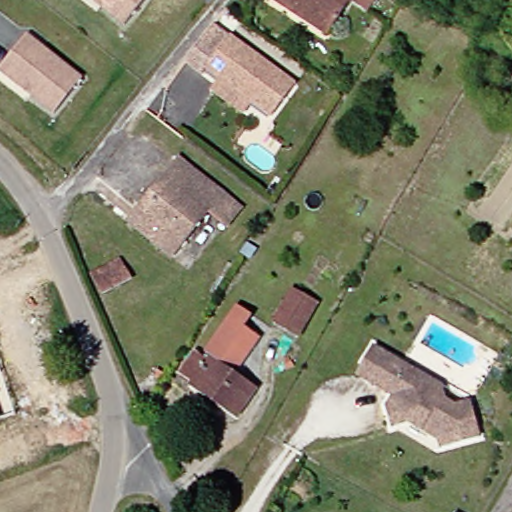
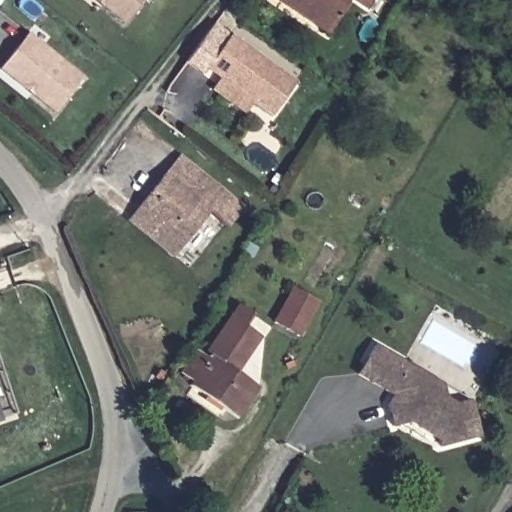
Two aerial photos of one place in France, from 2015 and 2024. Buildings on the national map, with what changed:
unchanged [(95,0),(144,0),(125,24),(95,0)]
unchanged [(311,5),(305,14),(284,0),(355,0),(340,24),(311,5)]
unchanged [(212,68),(207,75),(190,62),(219,24),(235,36),(301,84),(277,115),(257,101),(249,113),(217,89),(225,78),(212,68)]
unchanged [(55,113),(0,69),(0,68),(28,33),(83,77),(55,113)]
unchanged [(182,153),(245,203),(232,219),(214,205),(169,169),(182,153)]
unchanged [(189,237),(144,200),(169,169),(214,205),(189,237)]
unchanged [(290,177),(286,184),(280,180),(284,174),(290,177)]
unchanged [(132,277),(102,294),(92,274),(122,257),(132,277)]
unchanged [(317,300),(297,336),(275,323),(295,288),(317,300)]
unchanged [(257,382),(236,412),(189,379),(192,376),(181,369),(197,346),(207,353),(210,349),(207,347),(239,299),(252,309),(245,320),(261,331),(251,346),(244,341),(229,362),(257,382)]
unchanged [(418,367),(423,389),(441,401),(448,399),(458,406),(472,401),(478,438),(439,447),(437,440),(409,421),(392,424),(388,403),(395,393),(373,379),(360,370),(372,353),(379,341),(418,367)]

